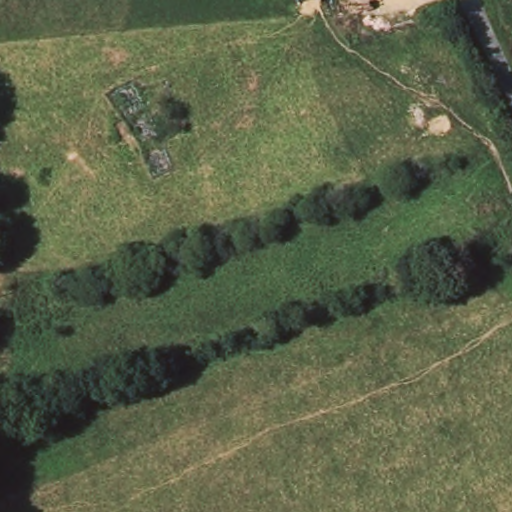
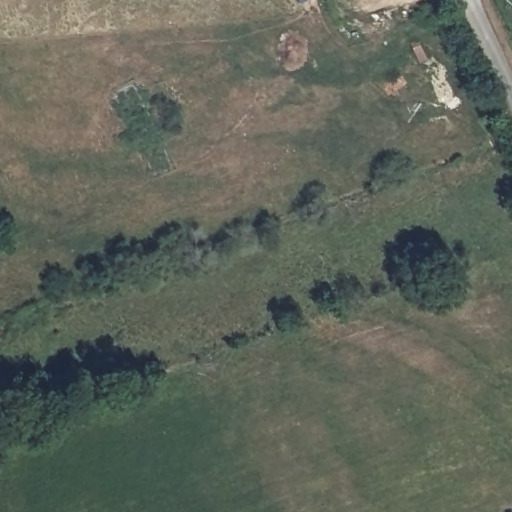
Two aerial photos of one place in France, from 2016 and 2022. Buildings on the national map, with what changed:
unchanged [(296,0),(306,0),(298,4),(296,0)]

